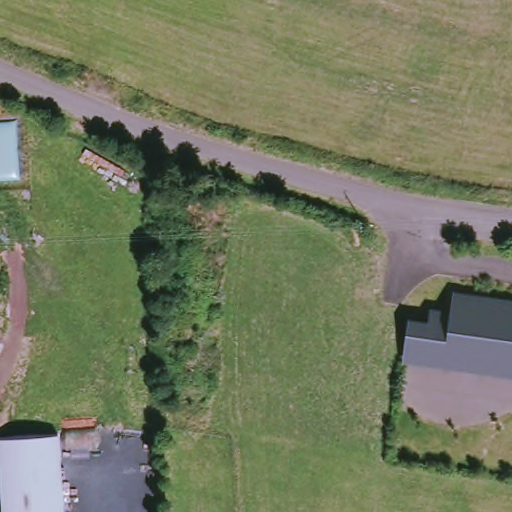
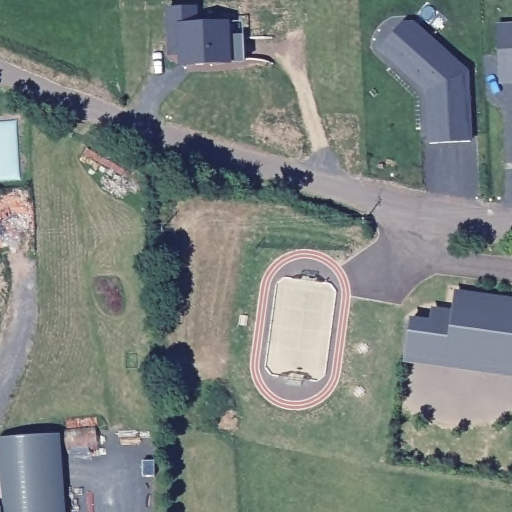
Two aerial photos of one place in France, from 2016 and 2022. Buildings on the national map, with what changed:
new [(196,8),(198,25),(229,24),(231,65),(178,68),(178,57),(167,57),(166,10),(196,8)]
new [(401,24),(413,22),(469,72),(473,141),(429,144),(427,92),(379,51),(401,24)]
new [(512,26),(512,81),(501,81),(499,26),(512,26)]
unchanged [(406,352),(410,315),(431,318),(433,306),(453,309),(455,289),(512,296),(512,366),(483,362),(448,358),(406,352)]
unchanged [(67,512),(3,512),(0,455),(0,438),(61,434),(67,512)]

